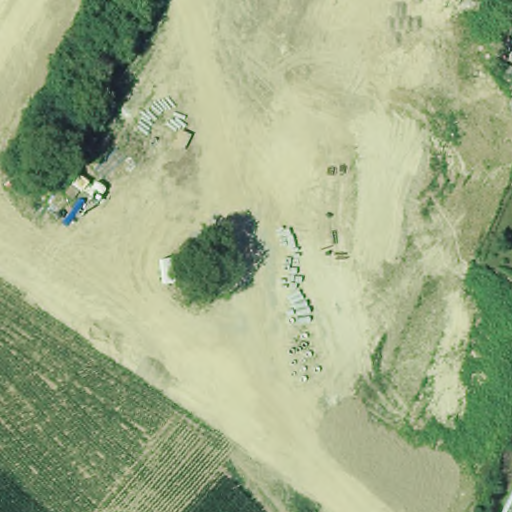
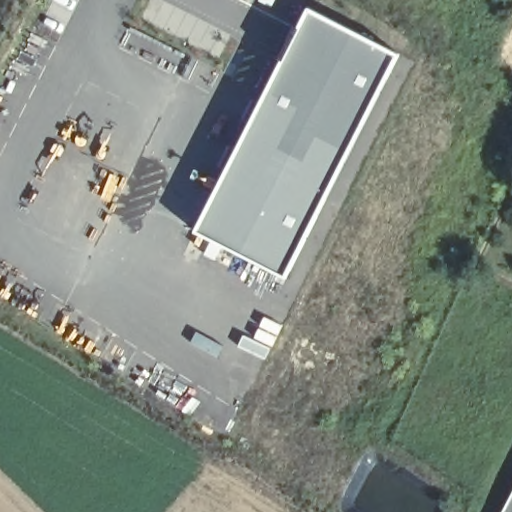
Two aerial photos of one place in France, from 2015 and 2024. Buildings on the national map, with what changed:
new [(397,54),(286,283),(189,231),(306,7),(397,54)]
unchanged [(512,512),(505,512),(512,499),(512,512)]

